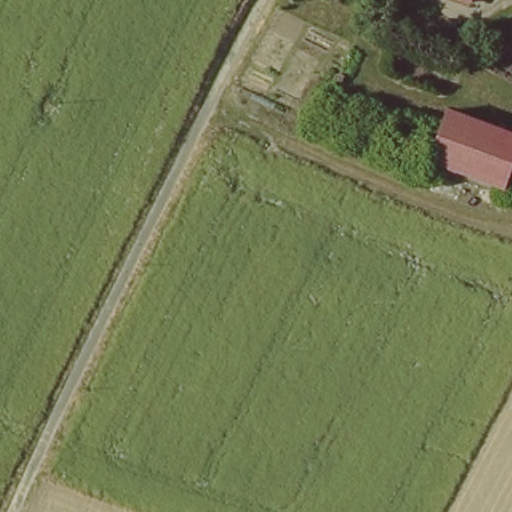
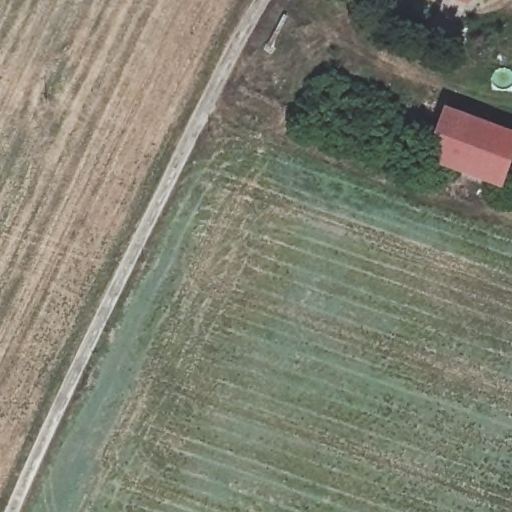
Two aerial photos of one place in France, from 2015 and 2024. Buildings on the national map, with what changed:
unchanged [(498,187),(429,161),(447,110),(512,133),(512,151),(498,187)]

